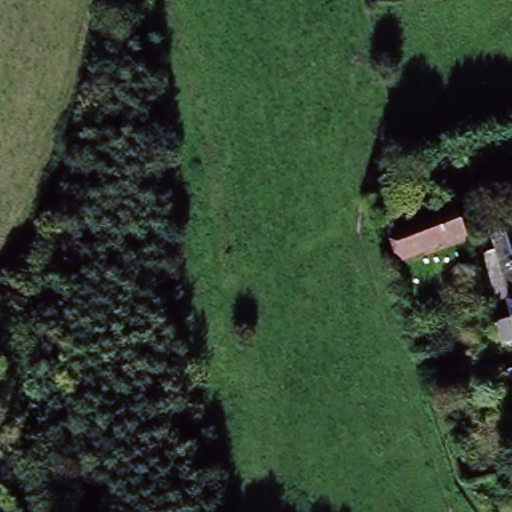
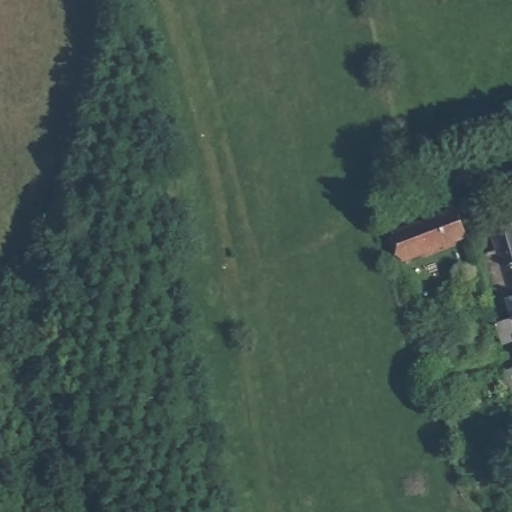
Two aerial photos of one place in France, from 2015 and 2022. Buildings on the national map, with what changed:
unchanged [(439,247),(405,260),(396,233),(428,222),(457,212),(465,237),(439,247)]
unchanged [(493,312),(500,310),(483,245),(494,242),(488,220),(512,213),(512,329),(499,332),(493,312)]
unchanged [(506,367),(508,366),(512,365),(512,388),(506,367)]
unchanged [(452,436),(445,407),(457,404),(465,433),(452,436)]

